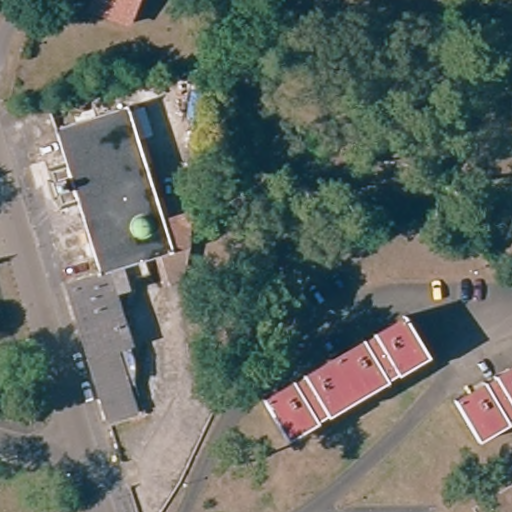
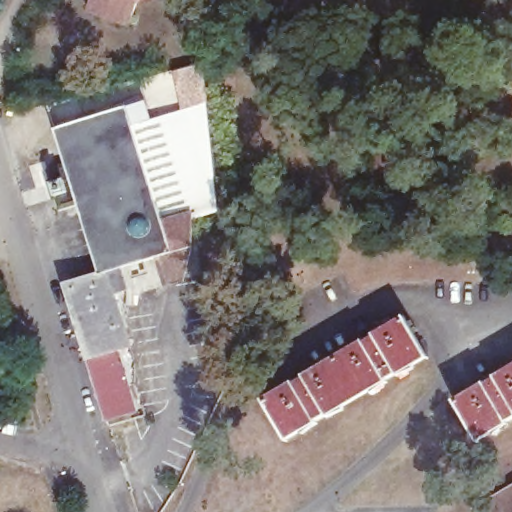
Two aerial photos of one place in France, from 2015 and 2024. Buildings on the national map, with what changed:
unchanged [(132,22),(92,7),(95,0),(143,0),(139,2),(132,22)]
unchanged [(512,5),(512,15),(491,15),(490,5),(512,5)]
new [(192,221),(162,231),(126,109),(144,102),(151,120),(181,110),(172,72),(202,65),(208,104),(220,212),(192,221)]
unchanged [(81,224),(70,186),(54,191),(51,181),(48,181),(45,169),(48,169),(45,158),(61,155),(54,131),(126,109),(162,231),(192,221),(183,280),(168,284),(160,256),(123,268),(99,277),(97,277),(81,224)]
unchanged [(68,287),(97,277),(99,277),(123,268),(128,289),(115,293),(129,344),(117,348),(136,411),(108,420),(68,287)]
unchanged [(428,347),(286,431),(264,396),(409,315),(428,347)]
unchanged [(462,401),(512,369),(512,420),(484,437),(462,401)]
unchanged [(512,512),(485,512),(479,500),(512,481),(512,512)]

